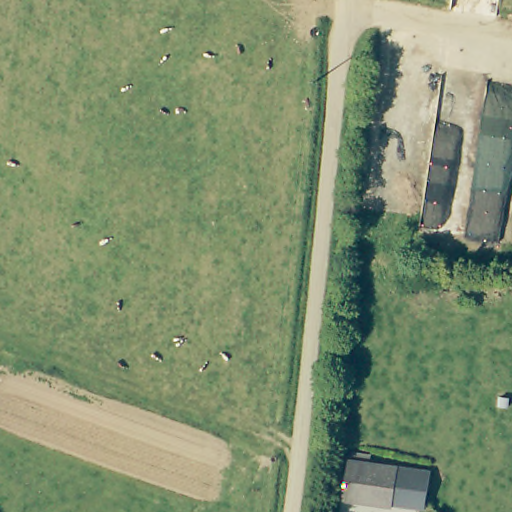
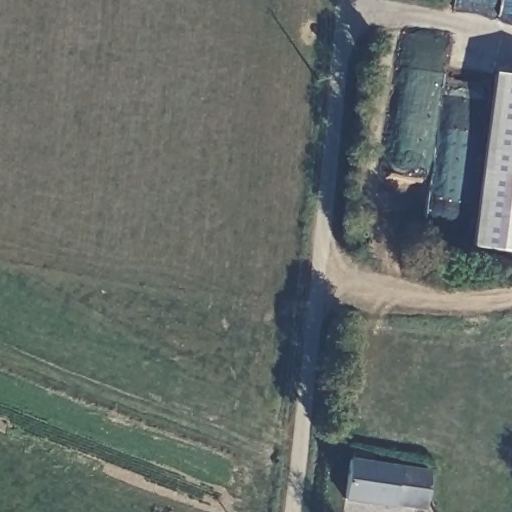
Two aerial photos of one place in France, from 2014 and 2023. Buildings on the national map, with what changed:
new [(491,73),(512,76),(512,254),(467,248),(491,73)]
unchanged [(426,509),(344,501),(349,461),(351,462),(352,453),(372,455),(371,464),(430,470),(426,509)]

